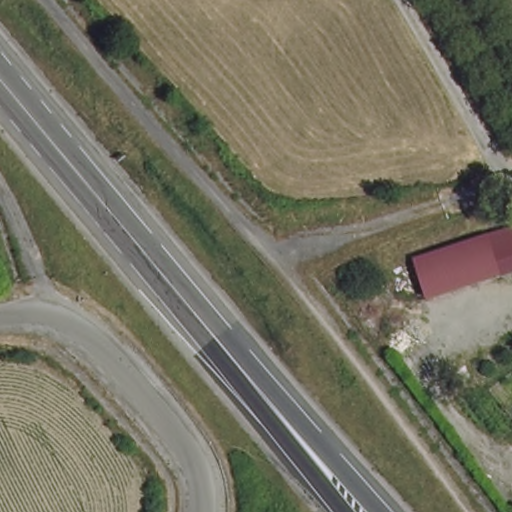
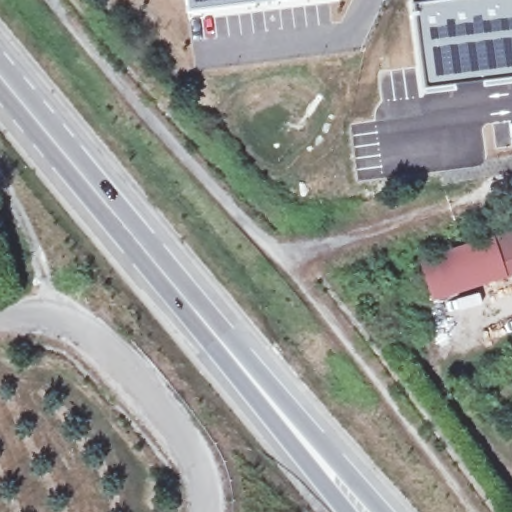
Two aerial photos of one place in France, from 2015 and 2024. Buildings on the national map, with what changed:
new [(260,1),(187,12),(186,0),(274,0),(260,1)]
new [(512,75),(470,80),(423,93),(418,69),(412,2),(429,0),(512,0),(512,75)]
unchanged [(512,276),(445,293),(435,256),(508,236),(512,252),(512,276)]

